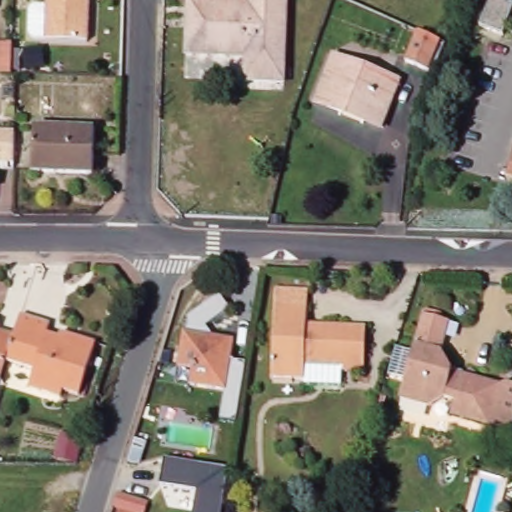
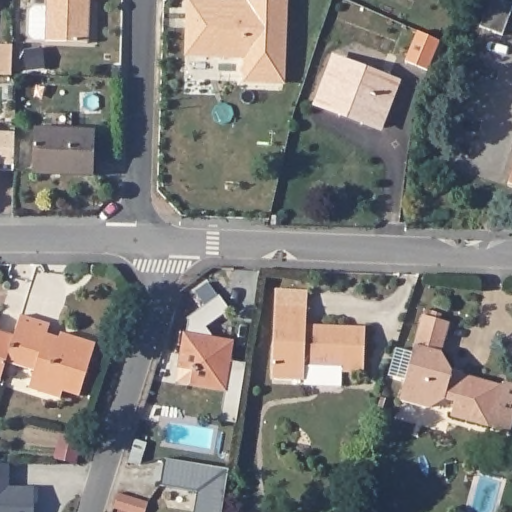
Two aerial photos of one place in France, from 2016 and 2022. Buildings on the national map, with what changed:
unchanged [(47,41),(47,40),(33,39),(29,35),(30,10),(34,7),(48,7),(48,0),(89,0),(88,43),(47,41)]
unchanged [(246,81),(247,58),(187,55),(189,0),(233,0),(248,0),(287,0),(284,83),(246,81)]
unchanged [(480,27),(490,0),(501,0),(512,4),(512,12),(503,35),(480,27)]
unchanged [(428,72),(407,62),(420,31),(442,41),(428,72)]
unchanged [(14,77),(0,76),(0,46),(15,46),(14,77)]
unchanged [(380,127),(320,105),(337,60),(398,83),(380,127)]
unchanged [(16,134),(15,165),(0,165),(0,133),(16,134)]
unchanged [(94,171),(33,169),(33,135),(95,136),(94,171)]
unchanged [(512,175),(512,187),(508,186),(512,175)]
unchanged [(342,372),(342,386),(304,385),(304,380),(278,379),(273,379),(275,307),(275,290),(308,291),(307,308),(307,325),(366,327),(365,372),(342,372)]
unchanged [(194,372),(179,370),(185,333),(188,334),(190,321),(189,320),(221,296),(231,310),(208,327),(215,338),(236,341),(233,362),(247,365),(238,424),(237,424),(221,421),(225,393),(192,387),(194,372)]
unchanged [(45,324),(40,340),(53,345),(56,332),(91,343),(75,396),(58,391),(56,398),(24,388),(29,370),(2,362),(6,345),(9,335),(16,315),(45,324)]
unchanged [(451,416),(455,402),(445,399),(429,408),(400,400),(424,315),(450,322),(442,352),(453,372),(500,385),(507,381),(512,383),(512,427),(510,432),(451,416)]
unchanged [(9,335),(6,345),(2,362),(0,368),(0,333),(9,335)]
unchanged [(197,493),(161,486),(164,460),(229,470),(223,512),(194,512),(197,493)]
new [(9,463),(8,487),(35,487),(34,512),(0,512),(0,463),(9,463)]
unchanged [(146,512),(118,512),(118,510),(114,508),(118,493),(148,502),(146,512)]

